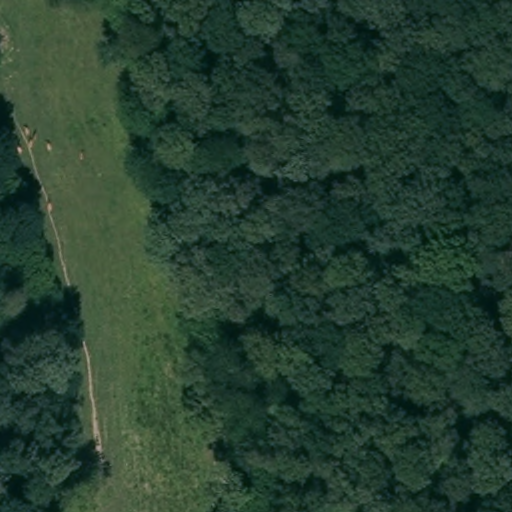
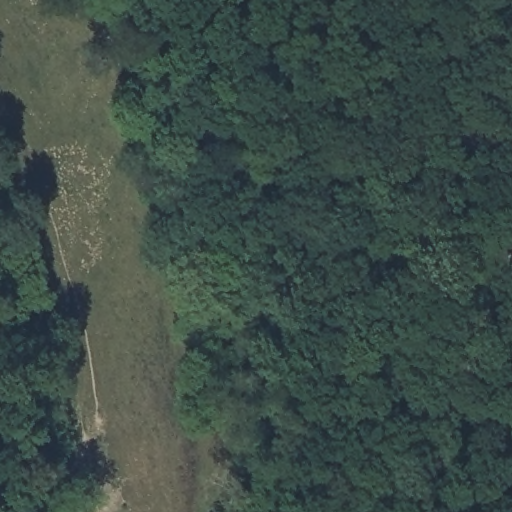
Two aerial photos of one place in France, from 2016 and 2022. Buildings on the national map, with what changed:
[]

